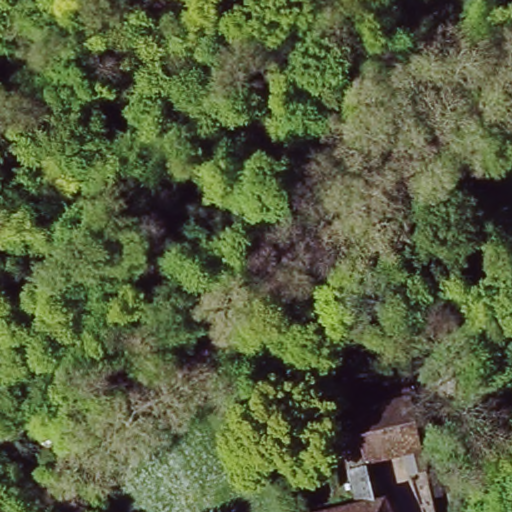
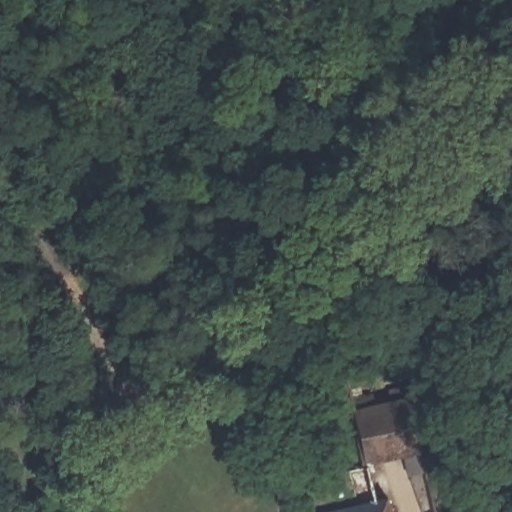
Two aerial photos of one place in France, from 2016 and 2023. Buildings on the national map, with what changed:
unchanged [(436,506),(430,479),(412,482),(405,466),(388,470),(400,512),(349,512),(348,506),(356,503),(330,384),(361,378),(364,392),(354,394),(355,404),(374,400),(375,408),(394,405),(392,396),(410,393),(412,405),(419,404),(433,463),(440,462),(450,503),(436,506)]
unchanged [(312,461),(309,471),(302,469),(305,458),(312,461)]

